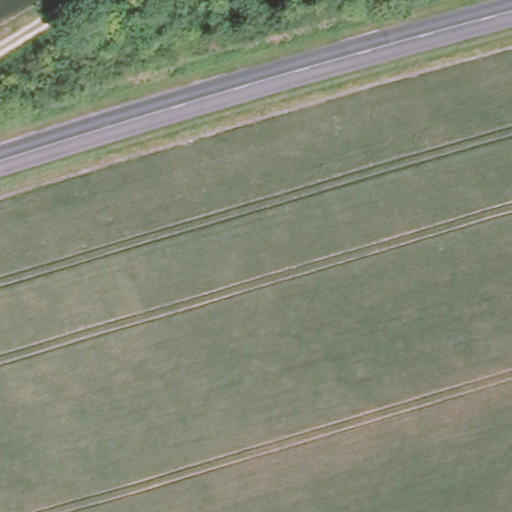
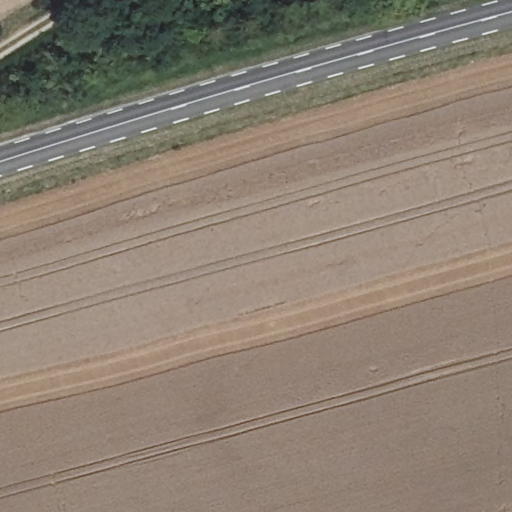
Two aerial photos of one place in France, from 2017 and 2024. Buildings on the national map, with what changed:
[]

